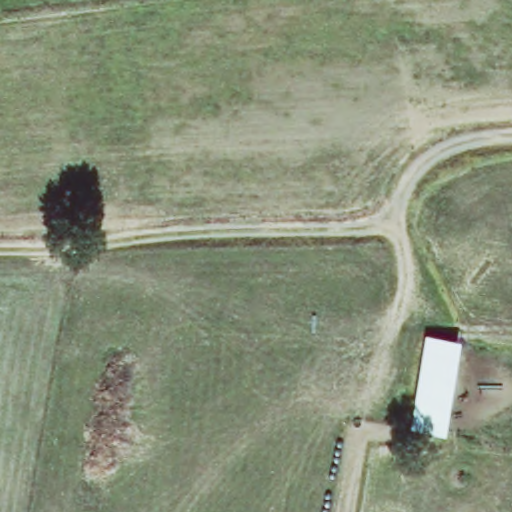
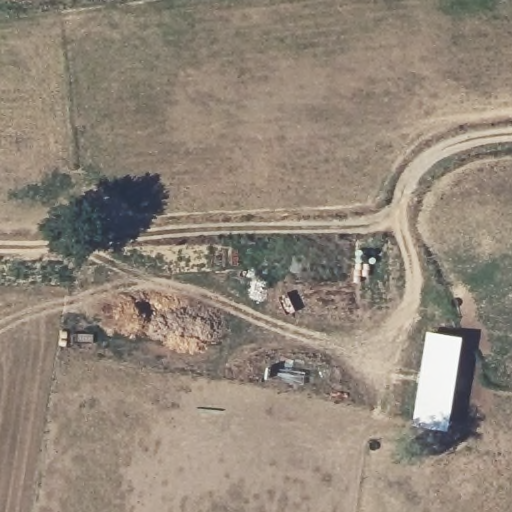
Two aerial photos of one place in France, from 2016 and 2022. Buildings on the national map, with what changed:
unchanged [(448,431),(412,426),(427,330),(462,335),(448,431)]

